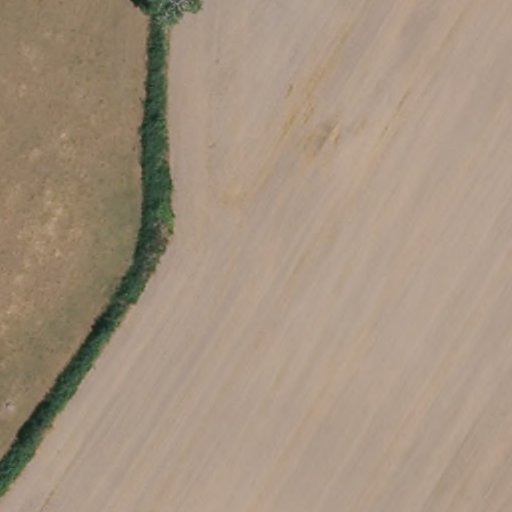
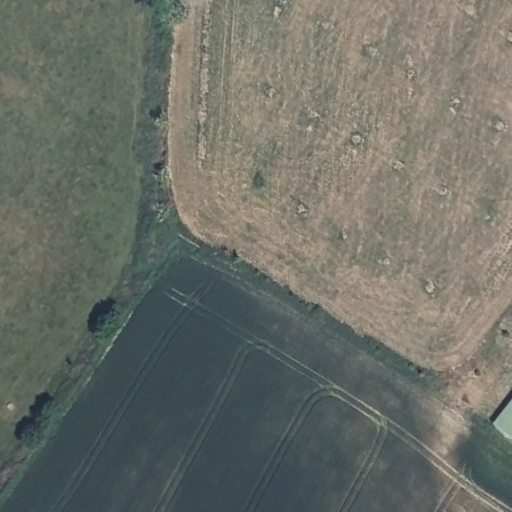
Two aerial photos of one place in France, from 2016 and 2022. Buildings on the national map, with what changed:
new [(493,424),(512,400),(512,439),(493,424)]

